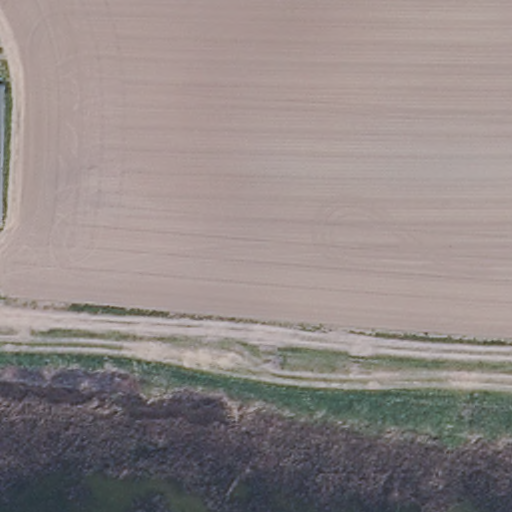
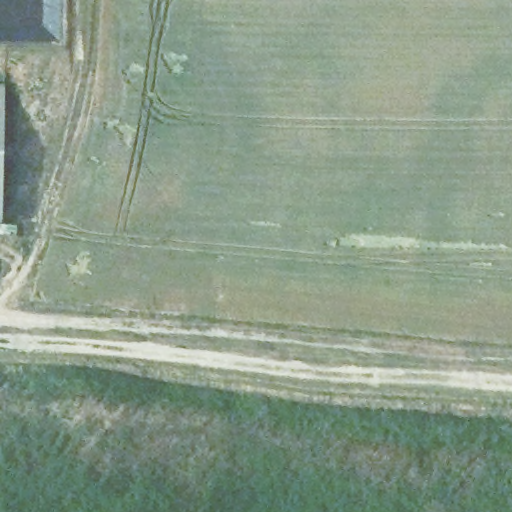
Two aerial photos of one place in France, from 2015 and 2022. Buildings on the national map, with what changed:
unchanged [(0,215),(0,117),(2,215),(0,215)]

